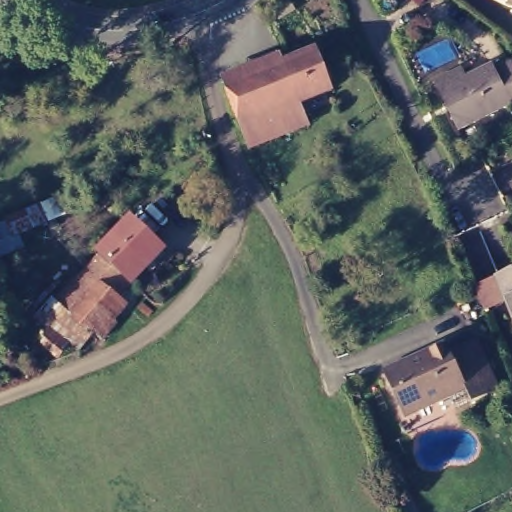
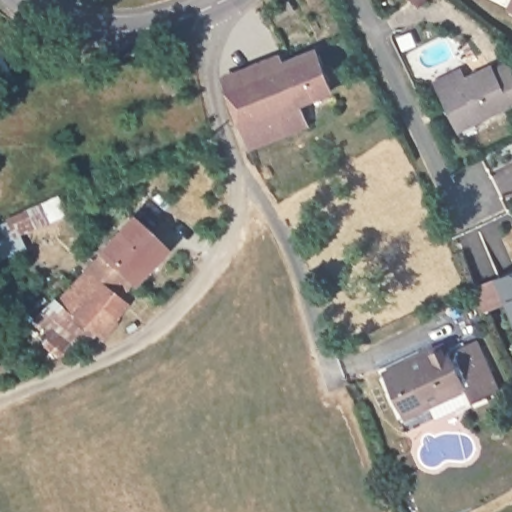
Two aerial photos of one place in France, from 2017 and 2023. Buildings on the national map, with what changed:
unchanged [(510,6),(512,1),(512,8),(510,6)]
unchanged [(242,130),(223,70),(290,47),(313,39),(328,80),(297,90),(304,111),(242,130)]
unchanged [(488,75),(501,68),(512,86),(512,105),(462,134),(438,94),(435,85),(459,71),(465,78),(483,68),(488,75)]
unchanged [(87,274),(124,219),(139,230),(162,245),(160,247),(122,304),(130,310),(105,341),(99,337),(86,353),(50,328),(61,311),(87,274)]
unchanged [(495,279),(512,271),(512,316),(495,279)]
unchanged [(462,411),(452,397),(414,416),(393,374),(417,362),(422,370),(478,342),(502,390),(462,411)]

